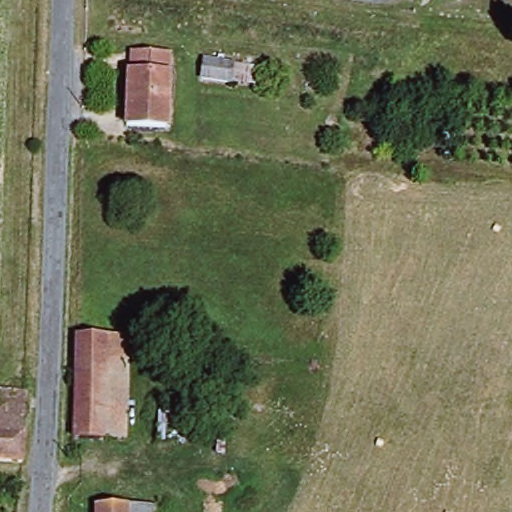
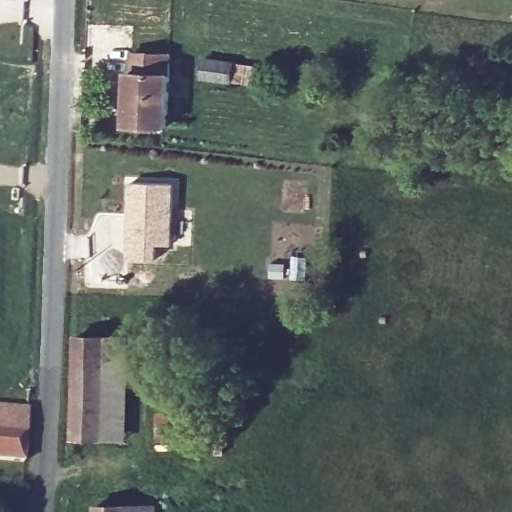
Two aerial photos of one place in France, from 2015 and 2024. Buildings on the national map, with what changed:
unchanged [(166,126),(132,125),(133,93),(127,93),(128,71),(131,71),(131,52),(169,54),(166,126)]
unchanged [(235,60),(258,65),(256,83),(232,83),(198,77),(202,55),(235,60)]
new [(171,184),(170,243),(155,243),(154,258),(129,256),(131,183),(171,184)]
unchanged [(124,437),(73,435),(77,336),(126,337),(124,437)]
unchanged [(0,459),(0,404),(26,406),(21,461),(0,459)]
unchanged [(97,506),(154,506),(154,512),(97,512),(97,506)]

